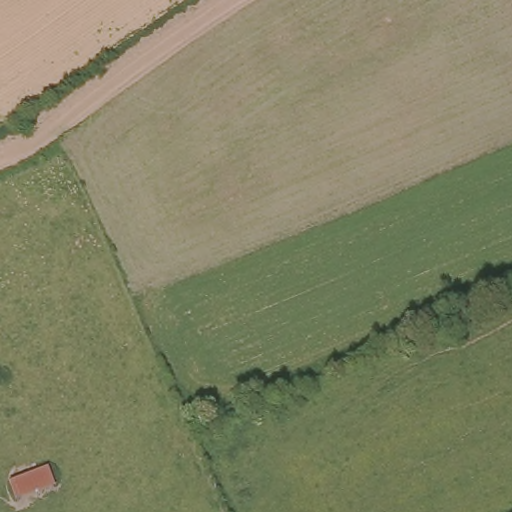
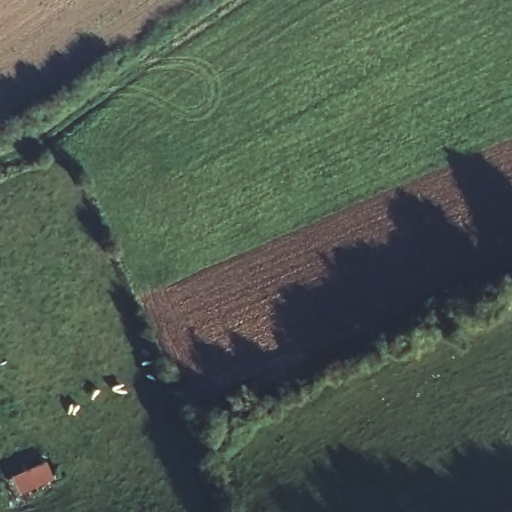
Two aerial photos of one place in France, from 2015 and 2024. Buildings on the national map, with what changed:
unchanged [(48,463),(56,483),(15,498),(8,479),(48,463)]

